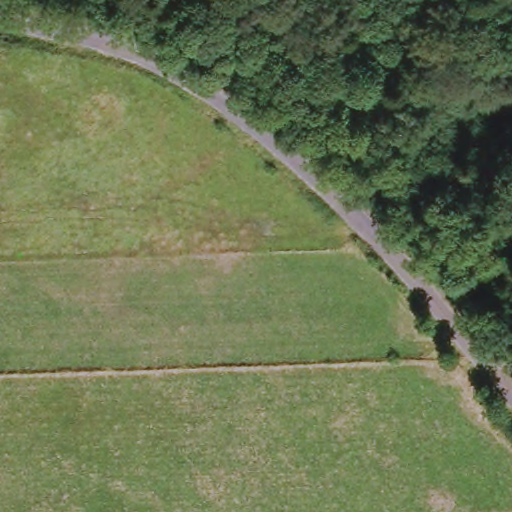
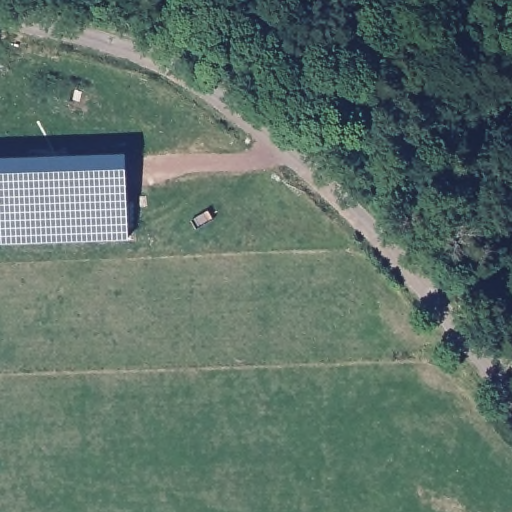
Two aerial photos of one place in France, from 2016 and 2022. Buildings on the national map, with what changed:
new [(125,153),(130,240),(0,244),(0,157),(125,153)]

